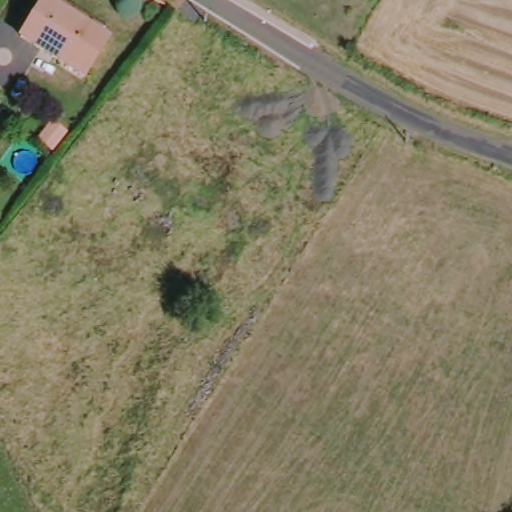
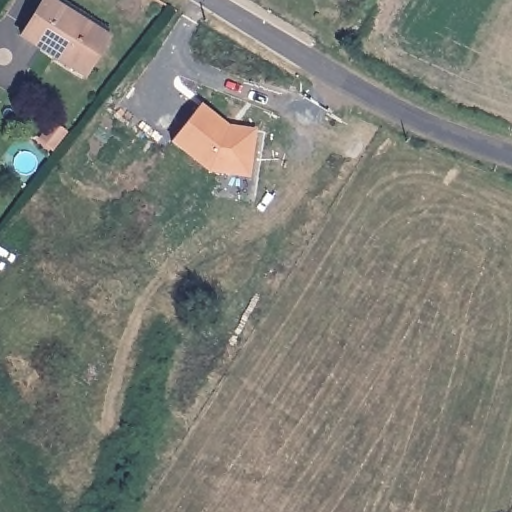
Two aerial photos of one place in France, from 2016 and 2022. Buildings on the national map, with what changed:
unchanged [(107,37),(84,76),(20,37),(42,0),(48,0),(107,37)]
new [(228,126),(257,129),(250,179),(208,173),(170,142),(202,104),(228,126)]

